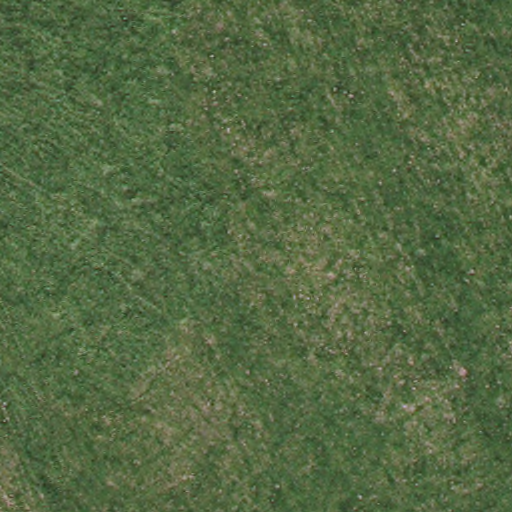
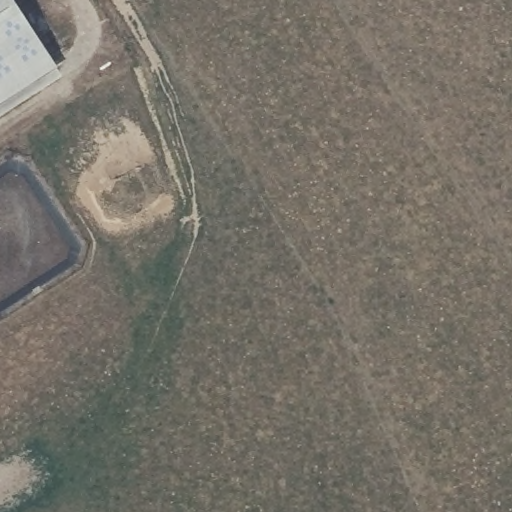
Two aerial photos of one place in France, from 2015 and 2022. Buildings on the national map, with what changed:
new [(0,109),(0,0),(14,0),(60,71),(0,109)]

